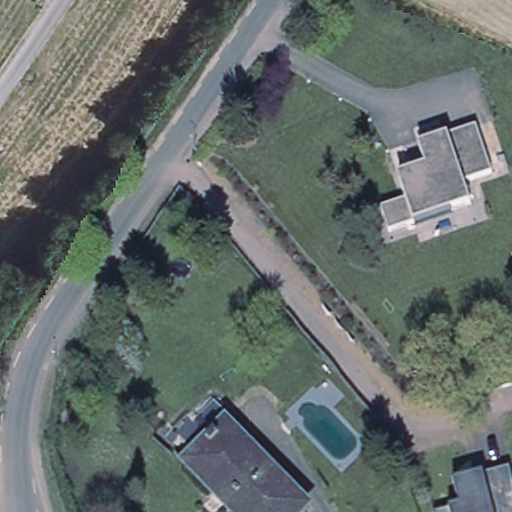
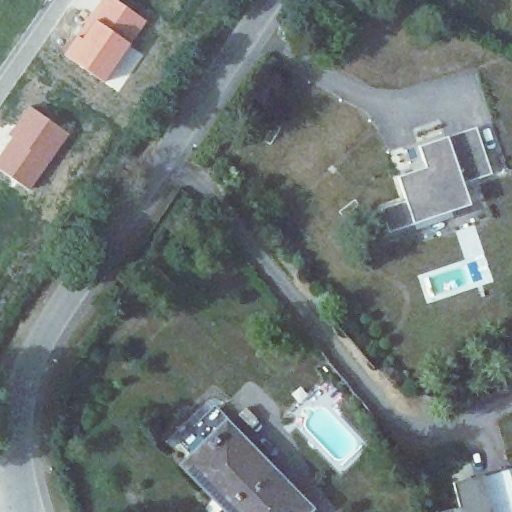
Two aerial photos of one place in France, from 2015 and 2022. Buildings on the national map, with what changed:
new [(106,83),(67,55),(92,17),(95,20),(105,0),(114,0),(146,21),(106,83)]
new [(68,134),(30,190),(0,169),(0,159),(16,139),(12,136),(31,109),(68,134)]
unchanged [(475,129),(490,177),(461,185),(468,209),(389,234),(380,209),(405,200),(397,177),(424,169),(417,148),(475,129)]
unchanged [(194,466),(176,445),(212,409),(275,473),(270,477),(303,512),(229,512),(189,471),(194,466)]
unchanged [(459,509),(453,483),(512,470),(512,512),(444,512),(459,509)]

